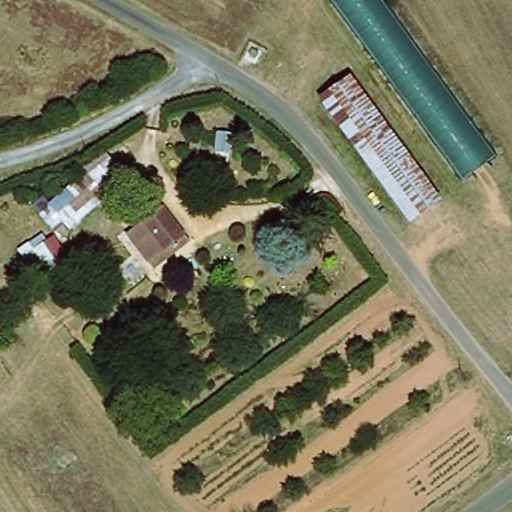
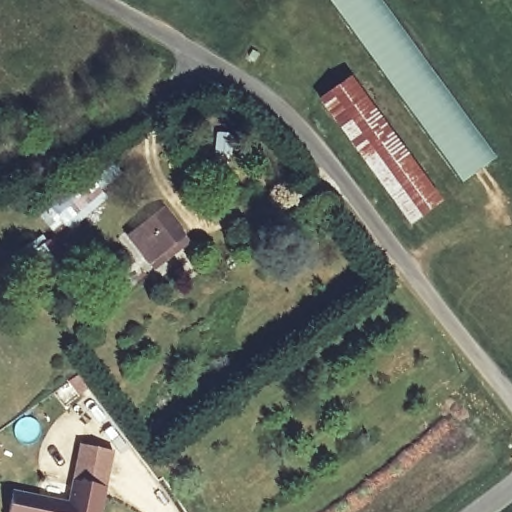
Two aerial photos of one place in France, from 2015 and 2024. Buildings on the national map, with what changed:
unchanged [(495,157),(464,180),(336,5),(332,0),(382,0),(495,157)]
unchanged [(411,224),(323,107),(353,85),(440,201),(411,224)]
unchanged [(54,205),(91,175),(104,191),(68,222),(54,205)]
unchanged [(186,235),(151,265),(128,236),(150,219),(165,207),(168,212),(186,235)]
unchanged [(30,225),(34,231),(44,245),(23,258),(10,239),(30,225)]
new [(8,512),(12,490),(68,501),(79,445),(113,452),(101,512),(8,512)]

